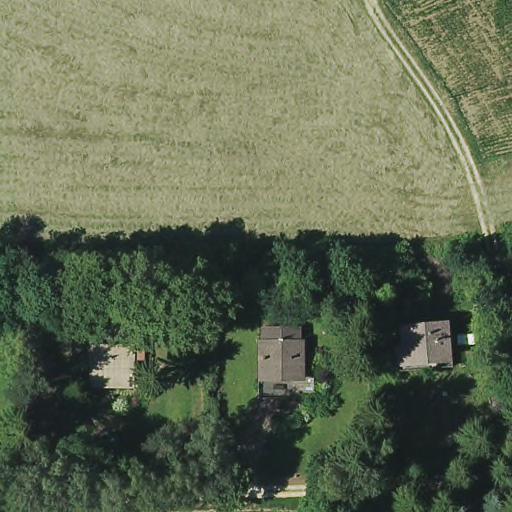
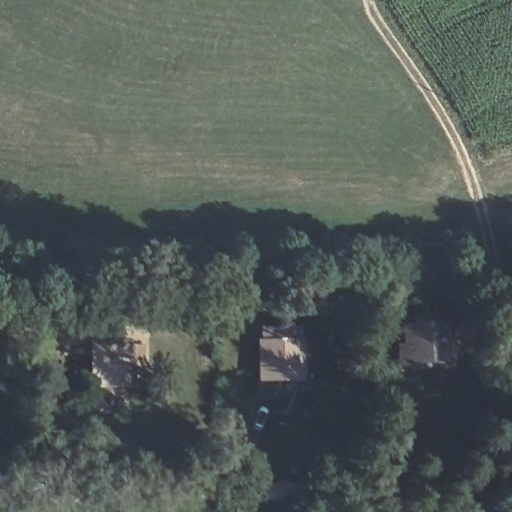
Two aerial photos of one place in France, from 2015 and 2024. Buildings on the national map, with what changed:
unchanged [(256,389),(256,349),(256,336),(297,336),(297,350),(296,389),(256,389)]
unchanged [(445,339),(446,371),(409,373),(407,342),(445,339)]
unchanged [(108,385),(108,378),(87,378),(88,360),(88,346),(128,345),(129,360),(128,386),(108,385)]

